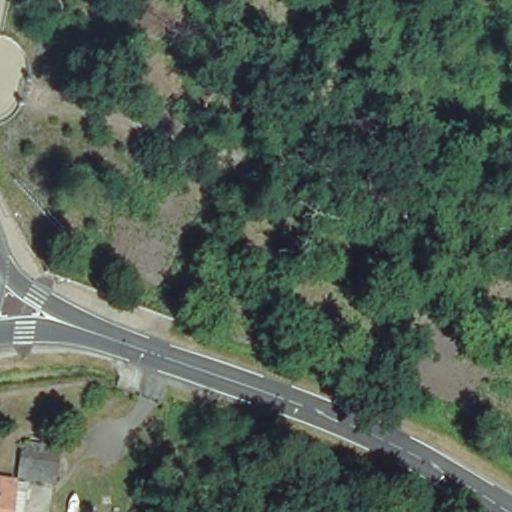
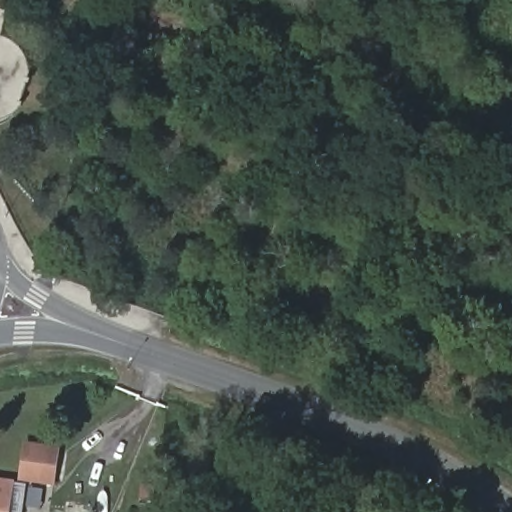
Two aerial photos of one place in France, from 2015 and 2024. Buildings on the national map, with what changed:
unchanged [(56,484),(17,478),(20,450),(25,451),(26,441),(61,445),(56,484)]
unchanged [(0,512),(0,479),(27,483),(24,512),(0,512)]

